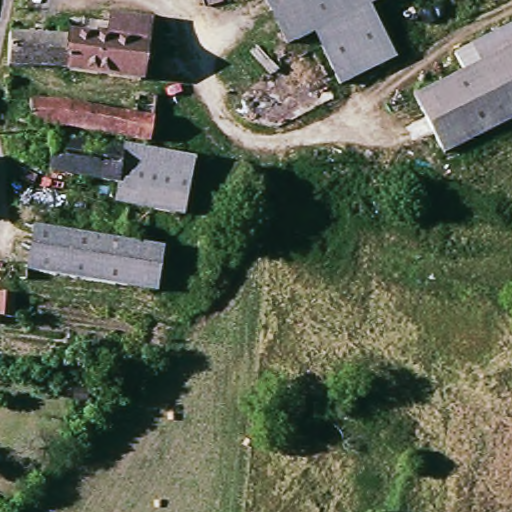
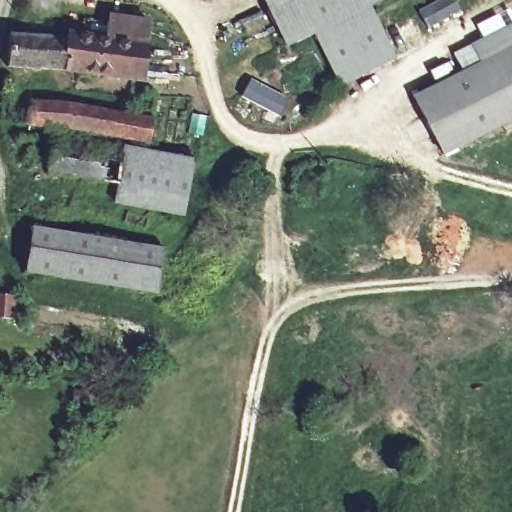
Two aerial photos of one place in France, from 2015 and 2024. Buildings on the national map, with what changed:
unchanged [(342,83),(325,51),(315,34),(290,46),(269,0),(376,0),(372,2),(399,57),(342,83)]
unchanged [(95,12),(110,15),(156,24),(147,85),(15,67),(17,39),(72,44),(74,31),(93,33),(95,12)]
unchanged [(444,152),(417,93),(487,62),(480,47),(512,33),(512,121),(444,152)]
unchanged [(22,103),(44,98),(141,113),(144,91),(162,94),(152,146),(19,122),(22,103)]
unchanged [(152,201),(117,193),(119,181),(52,169),(59,135),(164,153),(199,158),(191,209),(178,206),(152,201)]
unchanged [(168,247),(158,295),(27,271),(34,230),(35,221),(72,229),(168,247)]
unchanged [(7,315),(0,314),(0,289),(10,289),(7,315)]

